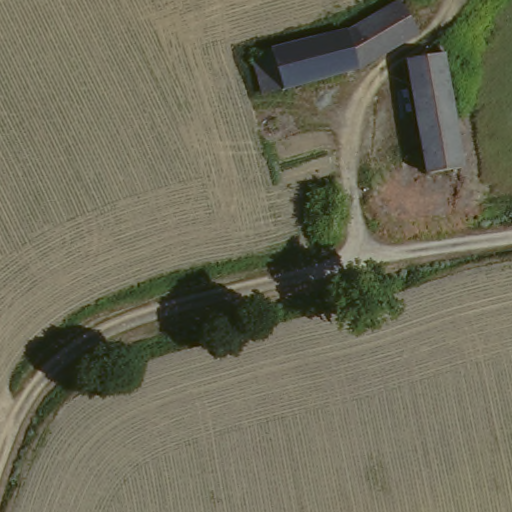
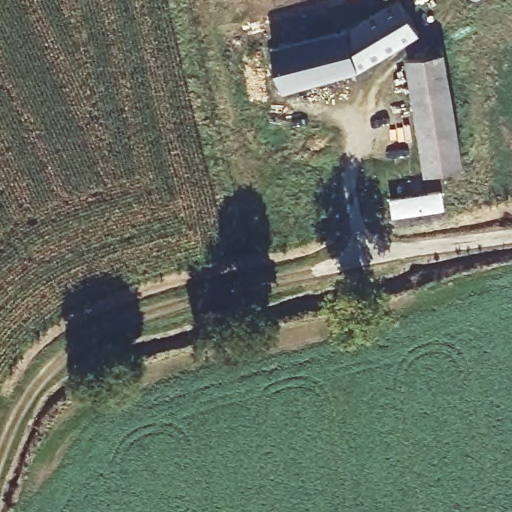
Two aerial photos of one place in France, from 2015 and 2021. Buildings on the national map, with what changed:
unchanged [(257,51),(277,46),(350,28),(397,0),(404,0),(421,29),(362,66),(287,84),(267,89),(257,51)]
unchanged [(457,169),(425,174),(407,62),(441,55),(450,106),(452,118),(461,169),(457,169)]

